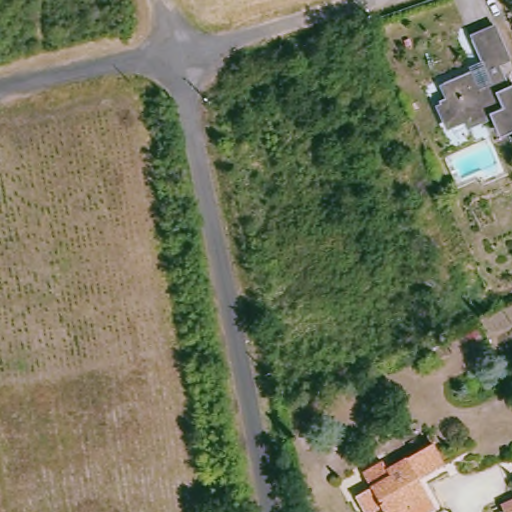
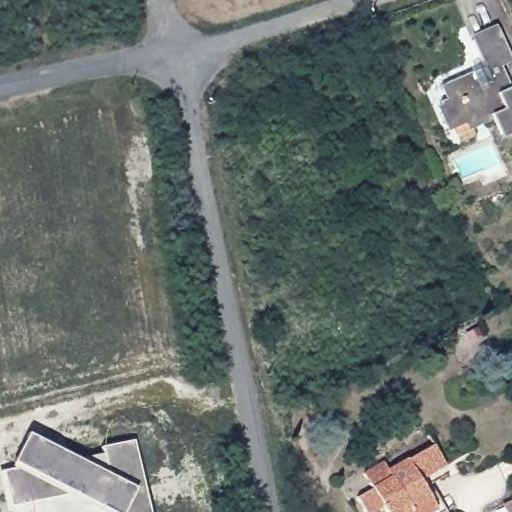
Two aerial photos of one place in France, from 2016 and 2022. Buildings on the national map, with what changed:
unchanged [(505,58),(494,63),(503,88),(507,87),(512,98),(512,141),(509,143),(502,128),(490,133),(484,118),(467,124),(465,119),(444,127),(433,101),(444,97),(438,83),(477,66),(467,44),(494,31),(505,58)]
new [(0,471),(14,469),(10,466),(30,432),(80,460),(104,455),(102,446),(132,441),(148,512),(5,512),(0,485),(0,471)]
unchanged [(427,486),(439,512),(380,512),(377,506),(363,512),(355,512),(347,496),(365,488),(357,472),(378,462),(382,469),(430,446),(445,477),(427,486)]
unchanged [(512,500),(512,512),(507,512),(503,503),(512,500)]

